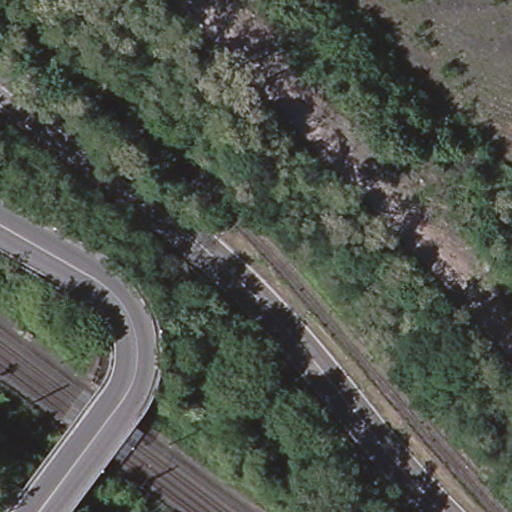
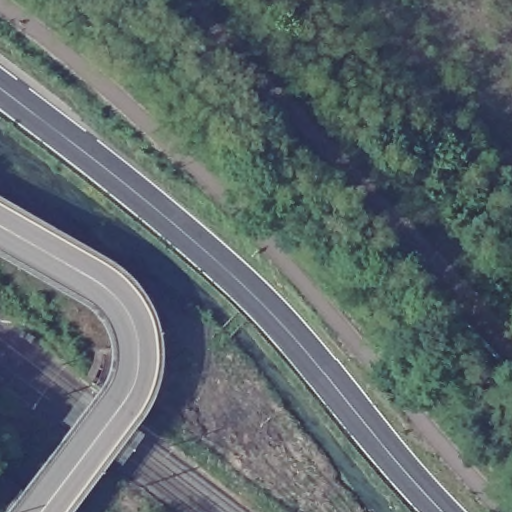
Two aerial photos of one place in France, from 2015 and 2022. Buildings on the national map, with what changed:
[]

